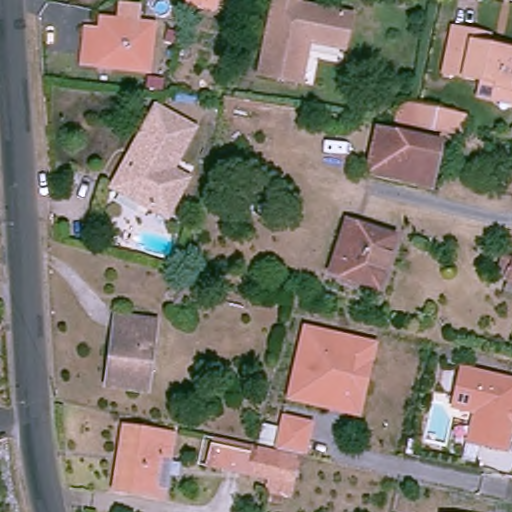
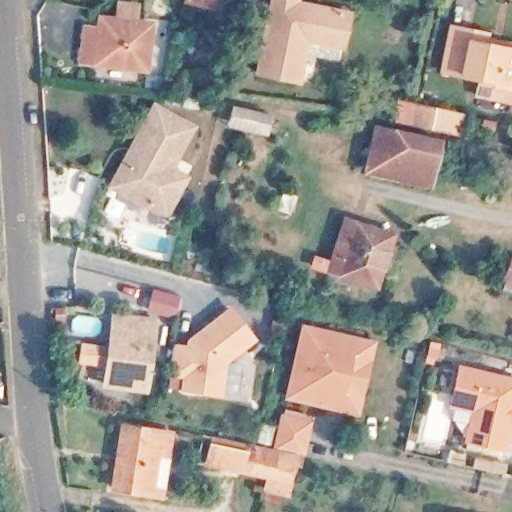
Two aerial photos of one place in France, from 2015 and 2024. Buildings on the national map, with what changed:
unchanged [(215,7),(187,0),(216,0),(215,7)]
unchanged [(343,46),(306,38),(297,80),(256,71),(271,0),(295,0),(295,1),(317,6),(350,13),(343,46)]
unchanged [(86,41),(98,42),(101,19),(114,20),(118,20),(119,13),(136,15),(136,22),(153,24),(148,71),(102,65),(83,62),(86,41)]
unchanged [(512,50),(512,103),(477,96),(480,80),(442,72),(452,27),(473,32),(471,42),(512,50)]
unchanged [(410,123),(396,121),(400,101),(414,104),(438,109),(453,112),(449,132),(434,129),(410,123)]
unchanged [(134,142),(153,105),(193,126),(173,163),(170,167),(187,176),(165,216),(148,206),(151,200),(118,182),(138,144),(134,142)]
unchanged [(439,141),(430,185),(367,171),(376,129),(439,141)]
unchanged [(328,272),(346,219),(394,235),(376,288),(328,272)]
unchanged [(504,279),(512,258),(512,282),(504,279)]
new [(181,392),(182,378),(171,377),(175,345),(186,346),(186,340),(231,307),(257,341),(227,362),(222,397),(181,392)]
unchanged [(106,384),(116,316),(155,322),(144,389),(106,384)]
unchanged [(303,325),(379,340),(362,415),(287,398),(303,325)]
unchanged [(475,409),(452,404),(461,367),(512,378),(512,418),(505,447),(479,441),(468,439),(475,409)]
unchanged [(282,414),(315,421),(309,452),(305,451),(302,459),(274,453),(282,414)]
unchanged [(114,484),(123,422),(168,430),(158,491),(114,484)]
unchanged [(269,495),(271,484),(197,470),(204,439),(274,453),(302,459),(301,472),(296,470),(290,499),(269,495)]

